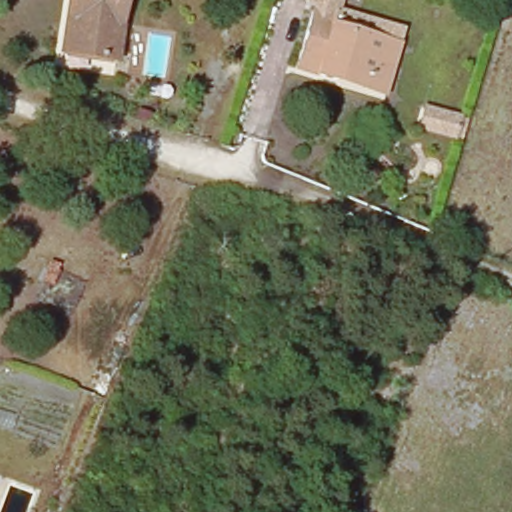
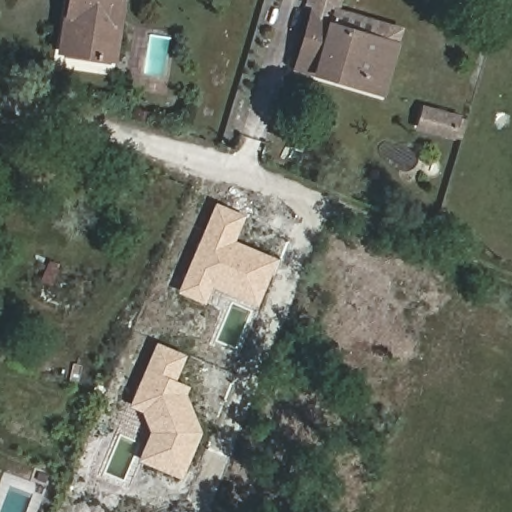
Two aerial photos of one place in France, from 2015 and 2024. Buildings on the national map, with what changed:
unchanged [(77,0),(125,0),(112,65),(66,56),(77,0)]
unchanged [(405,25),(400,45),(336,25),(340,11),(320,5),(301,69),(295,68),(312,5),(305,3),(306,0),(346,0),(345,7),(405,25)]
unchanged [(342,81),(301,69),(320,5),(340,11),(336,25),(400,45),(387,84),(385,94),(342,81)]
unchanged [(461,143),(416,129),(423,104),(467,116),(461,143)]
new [(278,258),(257,306),(212,286),(205,304),(178,291),(215,202),(246,215),(235,240),(278,258)]
new [(156,342),(187,355),(175,381),(189,386),(186,393),(201,431),(182,477),(138,460),(150,432),(142,410),(128,406),(156,342)]

